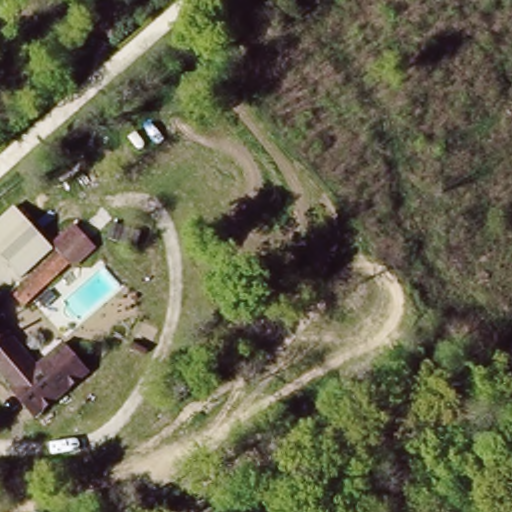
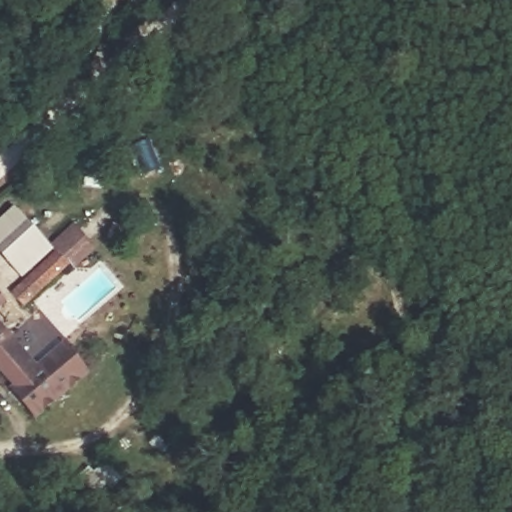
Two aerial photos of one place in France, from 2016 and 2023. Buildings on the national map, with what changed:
unchanged [(95,247),(75,267),(70,264),(25,307),(12,293),(56,250),(52,245),(73,224),(95,247)]
unchanged [(7,300),(0,306),(0,292),(7,300)]
unchanged [(25,352),(0,374),(0,325),(25,352)]
unchanged [(25,352),(45,376),(68,355),(77,363),(87,375),(33,422),(0,385),(0,374),(25,352)]

